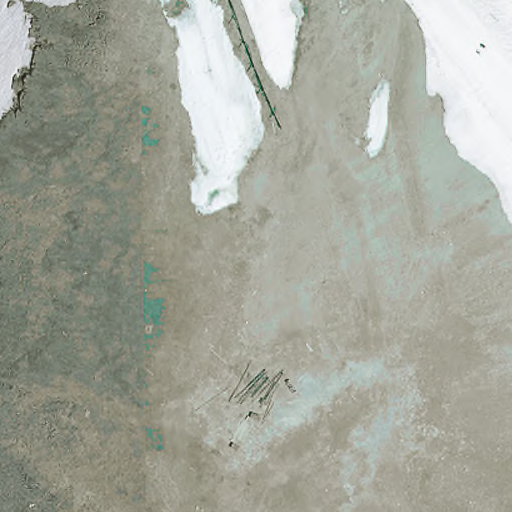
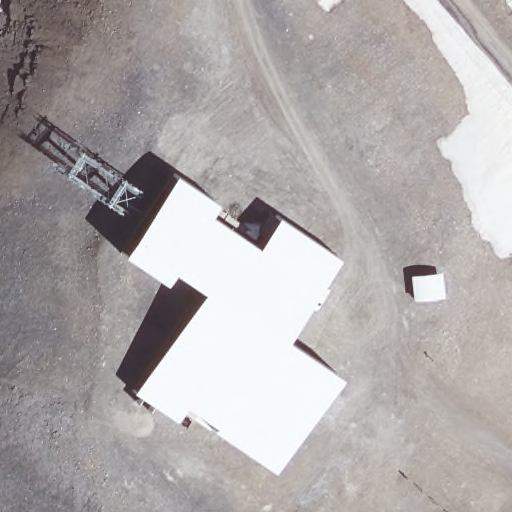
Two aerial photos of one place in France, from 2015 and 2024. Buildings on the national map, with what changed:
new [(223,219),(217,240),(260,266),(282,222),(343,266),(287,361),(338,395),(278,490),(193,427),(181,441),(135,404),(204,310),(160,271),(147,280),(123,263),(170,189),(223,219)]

